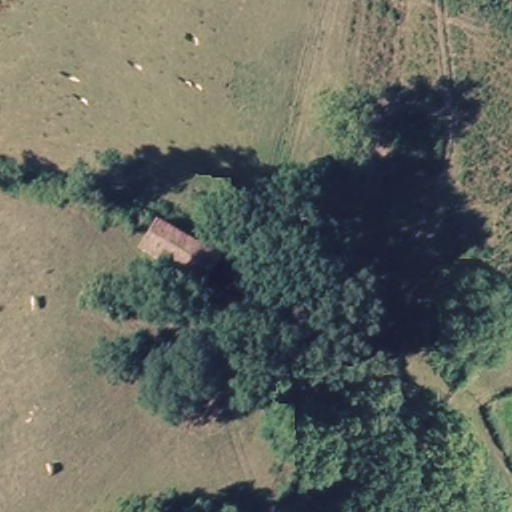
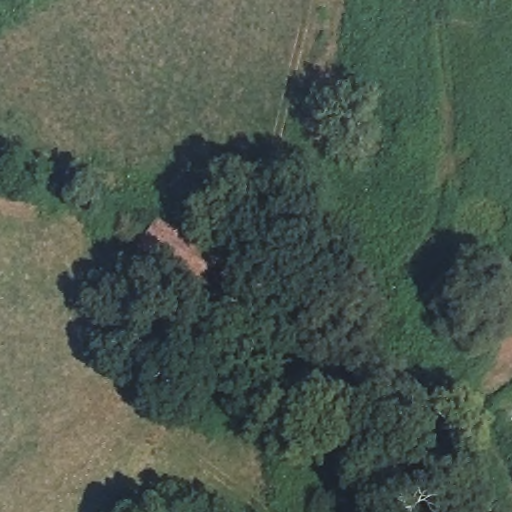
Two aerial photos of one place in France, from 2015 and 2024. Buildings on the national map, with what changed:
unchanged [(222,258),(207,284),(142,247),(159,220),(222,258)]

